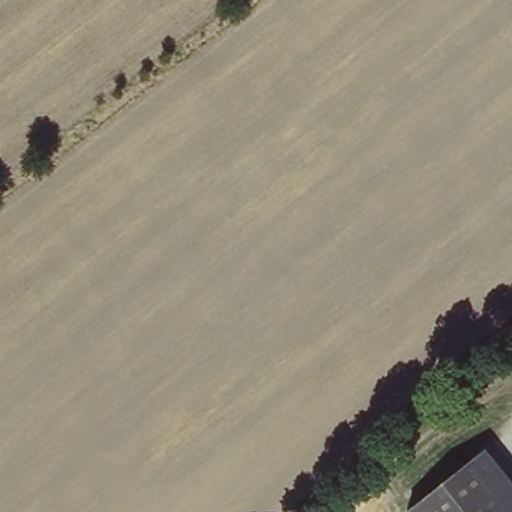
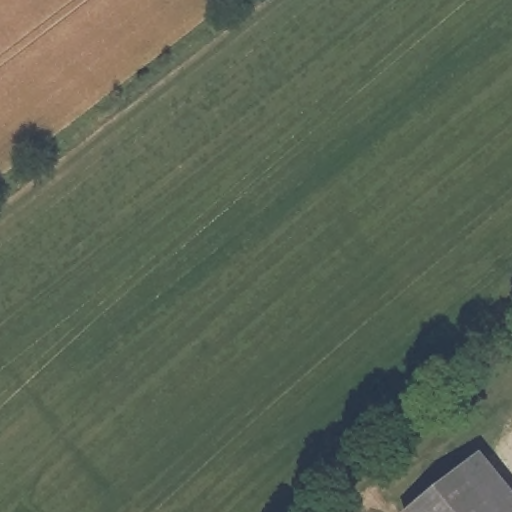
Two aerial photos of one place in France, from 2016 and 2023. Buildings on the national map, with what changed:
unchanged [(512,491),(512,512),(412,512),(481,454),(512,491)]

